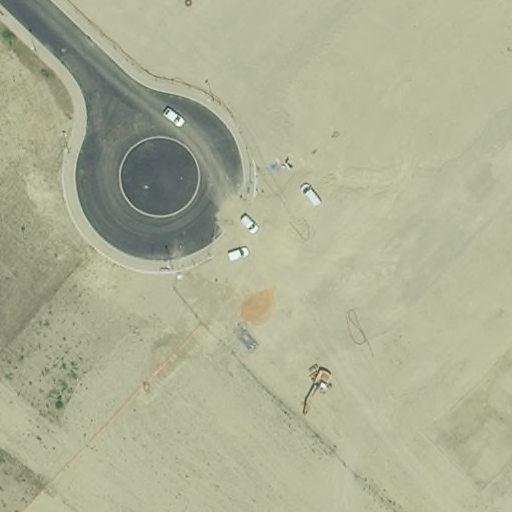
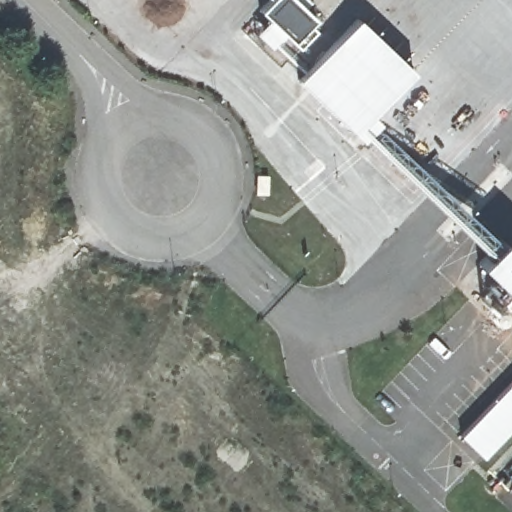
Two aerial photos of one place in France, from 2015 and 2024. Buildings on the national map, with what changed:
new [(310,0),(304,7),(315,17),(310,24),(317,31),(300,49),(259,10),(268,0),(310,0)]
new [(357,18),(413,71),(353,133),(298,81),(357,18)]
new [(257,175),(268,175),(267,194),(257,194),(257,175)]
new [(512,250),(512,296),(478,264),(501,240),(512,250)]
new [(483,457),(460,436),(512,381),(512,426),(483,457)]
new [(510,490),(512,487),(512,491),(510,490)]

